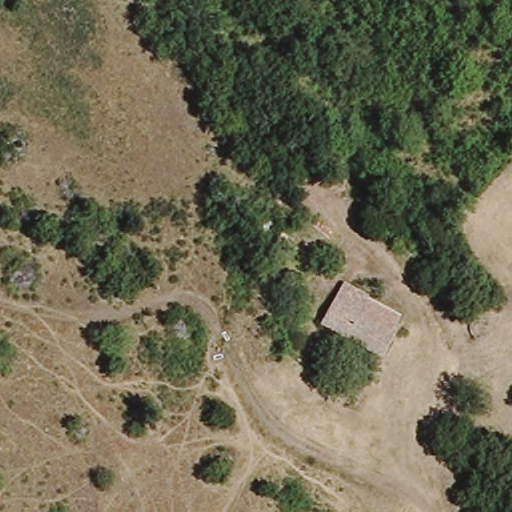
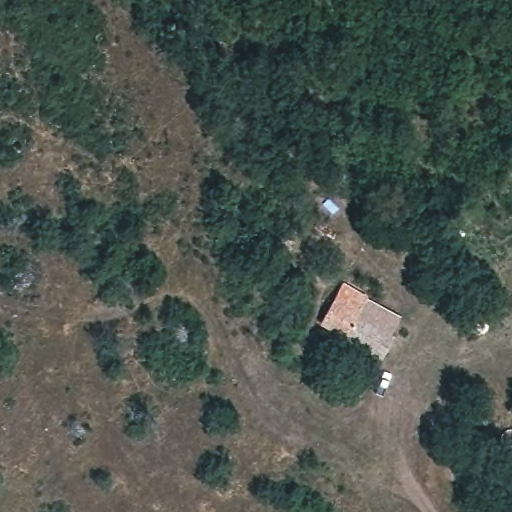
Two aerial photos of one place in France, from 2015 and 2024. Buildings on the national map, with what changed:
unchanged [(365,294),(405,317),(386,360),(323,327),(341,282),(365,294)]

